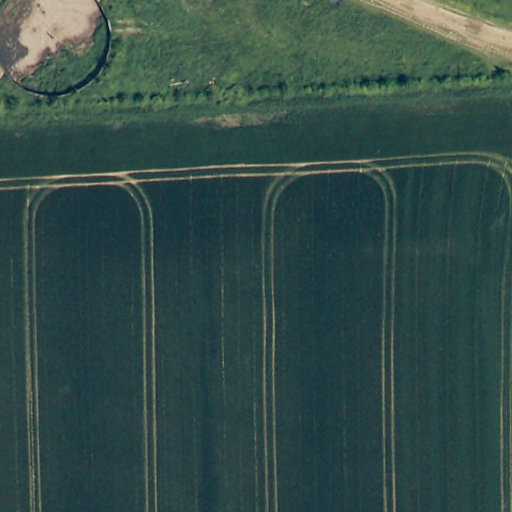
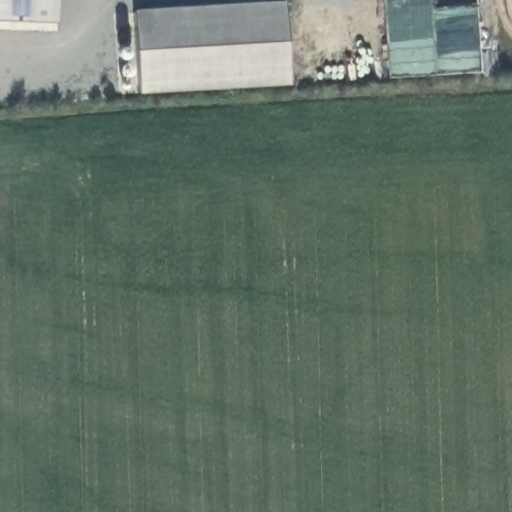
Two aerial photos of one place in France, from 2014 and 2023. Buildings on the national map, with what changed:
new [(0,21),(0,0),(56,0),(56,22),(0,21)]
new [(284,0),(290,85),(136,94),(133,10),(284,0)]

